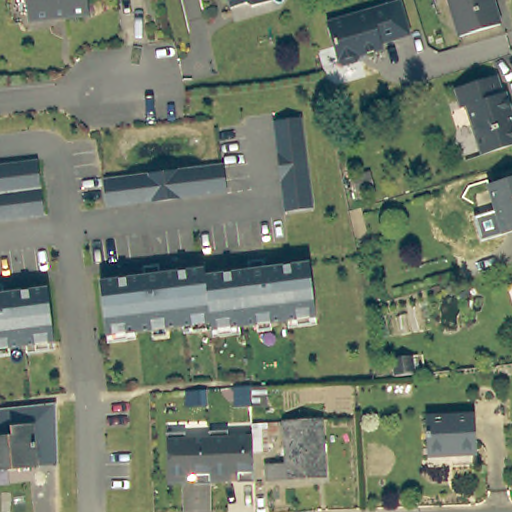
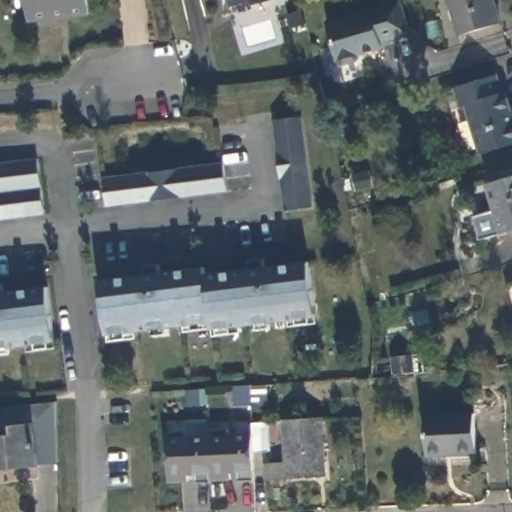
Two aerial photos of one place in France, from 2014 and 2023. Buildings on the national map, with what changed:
unchanged [(65,12),(63,9),(54,11),(53,13),(24,17),(22,0),(83,0),(84,10),(65,12)]
unchanged [(249,4),(242,1),(226,6),(224,0),(262,0),(249,4)]
unchanged [(400,0),(409,33),(381,42),(383,47),(359,54),(356,60),(344,64),(338,61),(327,22),(400,0)]
unchanged [(447,0),(493,0),(500,23),(458,36),(447,0)]
unchanged [(466,105),(460,107),(454,87),(498,73),(504,92),(507,92),(512,108),(512,143),(482,152),(466,105)]
unchanged [(302,117),(313,207),(285,211),(274,120),(302,117)]
unchanged [(44,214),(0,219),(0,163),(37,159),(44,214)]
unchanged [(103,178),(224,163),(227,191),(106,206),(103,178)]
unchanged [(488,182),(512,175),(512,230),(503,233),(488,182)]
unchanged [(95,280),(139,275),(138,266),(154,263),(154,273),(199,267),(199,275),(244,270),(243,261),(259,259),(260,268),(305,262),(311,316),(207,329),(205,322),(101,334),(95,280)]
unchanged [(49,336),(0,342),(0,286),(42,282),(49,336)]
unchanged [(397,374),(395,356),(411,355),(413,372),(397,374)]
unchanged [(36,463),(0,466),(0,435),(1,435),(1,430),(13,429),(13,427),(28,425),(26,405),(55,401),(56,428),(34,428),(36,463)]
unchanged [(474,411),(475,452),(457,452),(457,449),(427,451),(426,413),(474,411)]
unchanged [(326,473),(268,477),(267,461),(288,460),(285,417),(322,415),(326,473)]
unchanged [(238,479),(237,470),(230,470),(230,477),(212,478),(212,481),(211,481),(196,481),(195,472),(188,472),(188,480),(169,481),(166,430),(186,429),(186,435),(209,433),(209,427),(228,427),(228,432),(252,432),(252,420),(266,418),(267,442),(253,442),(254,478),(238,479)]

